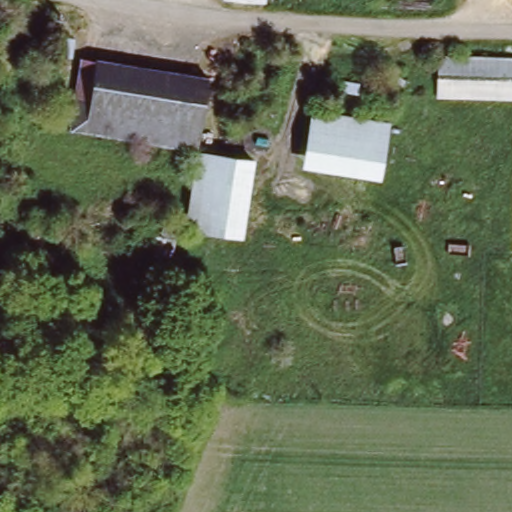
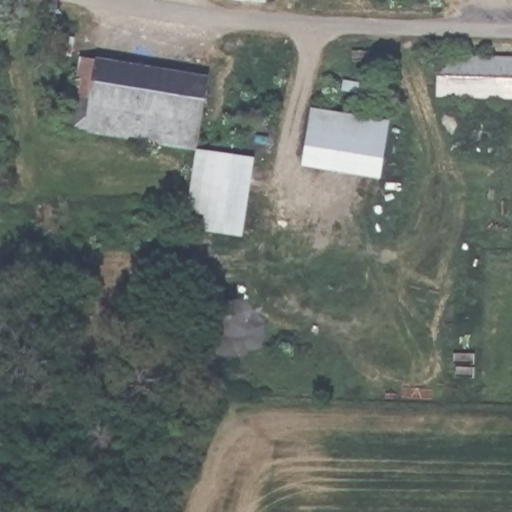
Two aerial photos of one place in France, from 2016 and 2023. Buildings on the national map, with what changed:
unchanged [(66,44),(66,59),(53,59),(53,44),(66,44)]
unchanged [(293,54),(280,120),(227,112),(240,46),(293,54)]
unchanged [(512,100),(433,96),(433,59),(512,59),(512,100)]
unchanged [(66,128),(75,63),(203,81),(193,146),(66,128)]
unchanged [(342,90),(366,91),(365,100),(342,98),(342,90)]
unchanged [(0,181),(0,95),(13,93),(19,179),(0,181)]
unchanged [(310,112),(385,123),(378,178),(302,168),(310,112)]
unchanged [(242,153),(232,229),(205,225),(185,222),(193,146),(242,153)]
unchanged [(66,219),(61,260),(0,251),(0,210),(66,219)]
unchanged [(105,213),(163,222),(157,260),(99,251),(105,213)]

